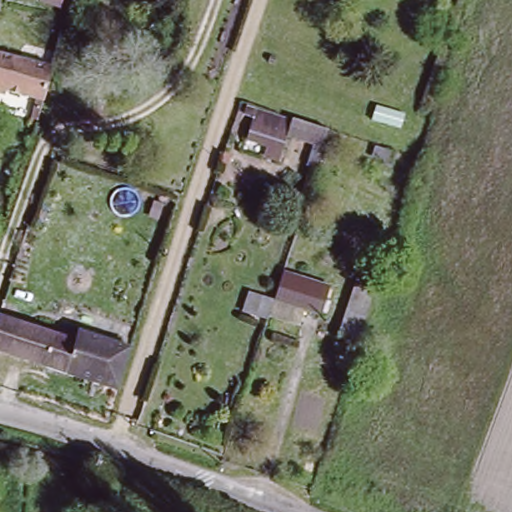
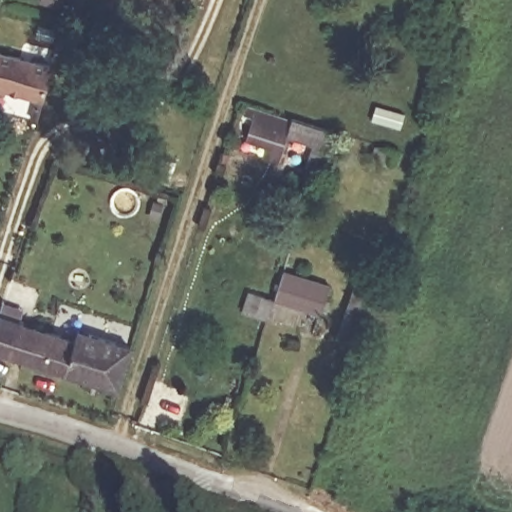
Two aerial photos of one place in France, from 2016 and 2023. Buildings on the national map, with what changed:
unchanged [(31,98),(0,90),(0,52),(50,65),(40,101),(35,117),(26,115),(31,98)]
unchanged [(332,131),(319,169),(305,164),(311,142),(283,133),(278,150),(245,140),(254,106),(332,131)]
unchanged [(271,314),(269,318),(245,310),(252,290),(276,298),(285,272),(331,289),(323,315),(302,308),(296,323),(271,314)]
unchanged [(358,282),(378,289),(362,339),(342,332),(358,282)]
unchanged [(76,331),(131,349),(118,389),(0,351),(0,315),(73,339),(76,331)]

